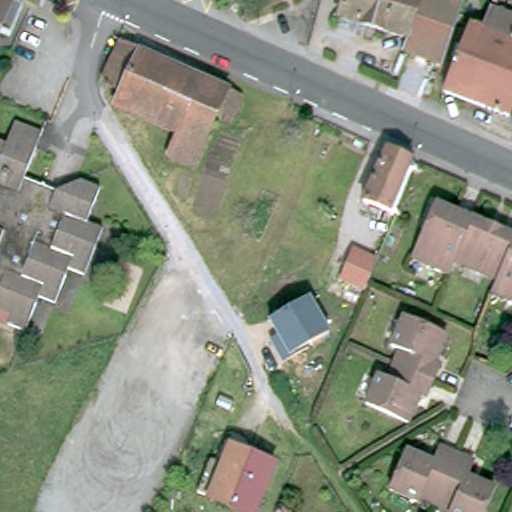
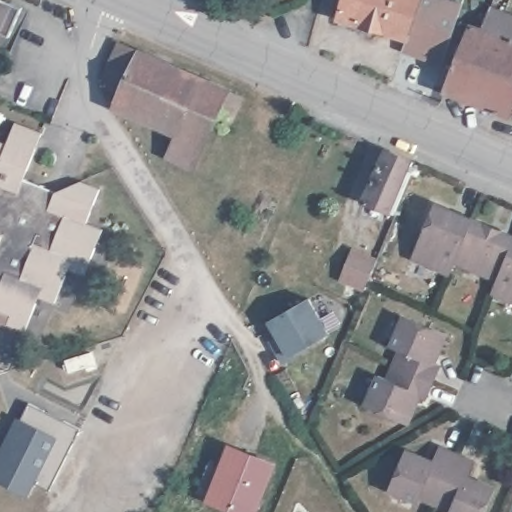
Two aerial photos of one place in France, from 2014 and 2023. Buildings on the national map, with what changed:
unchanged [(10,37),(0,32),(0,0),(7,0),(22,7),(10,37)]
unchanged [(340,20),(345,0),(418,0),(405,40),(366,27),(363,36),(337,28),(340,20)]
unchanged [(449,0),(453,2),(454,0),(480,0),(472,23),(460,19),(443,66),(402,52),(405,40),(418,0),(449,0)]
unchanged [(465,102),(491,31),(492,29),(484,26),(490,9),(512,17),(512,113),(510,118),(465,102)]
unchanged [(445,95),(472,23),(483,27),(484,26),(492,29),(491,31),(465,102),(445,95)]
unchanged [(108,79),(115,62),(126,39),(248,92),(237,117),(223,111),(200,165),(172,152),(182,132),(120,105),(127,87),(120,85),(108,79)]
unchanged [(2,185),(0,184),(0,141),(10,145),(18,124),(46,134),(29,180),(59,192),(85,181),(105,189),(92,222),(106,227),(88,275),(72,268),(60,303),(43,297),(30,332),(12,324),(15,316),(0,310),(0,189),(2,185)]
unchanged [(390,150),(418,162),(417,165),(397,212),(368,201),(390,150)]
unchanged [(496,277),(497,275),(455,257),(454,262),(450,271),(415,256),(412,255),(435,201),(455,210),(457,207),(512,230),(512,297),(492,288),(496,277)]
unchanged [(335,303),(345,283),(357,255),(377,262),(365,291),(358,288),(350,309),(335,303)]
unchanged [(330,335),(300,351),(303,356),(283,366),(270,344),(277,341),(267,322),(310,296),(330,335)]
unchanged [(446,366),(432,401),(427,398),(415,425),(372,407),(384,377),(393,381),(405,352),(397,348),(409,318),(452,337),(442,364),(446,366)]
new [(3,455),(28,405),(44,413),(47,419),(62,427),(63,423),(80,431),(50,493),(34,486),(27,499),(0,486),(0,453),(3,455)]
unchanged [(480,456),(474,470),(501,482),(489,512),(457,512),(455,511),(457,506),(427,493),(425,497),(397,487),(413,446),(442,457),(447,442),(480,456)]
unchanged [(256,512),(250,512),(203,495),(217,462),(231,468),(237,451),(275,465),(256,512)]

